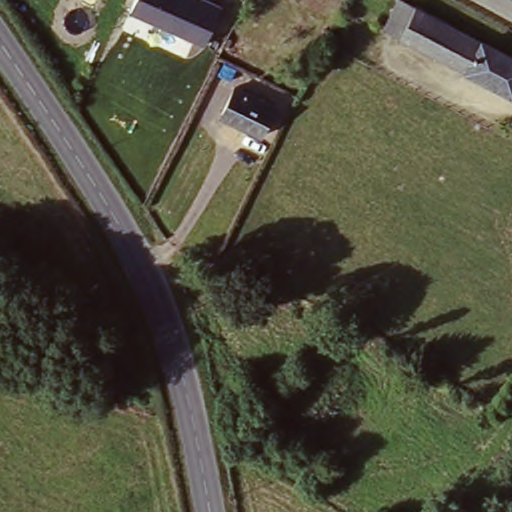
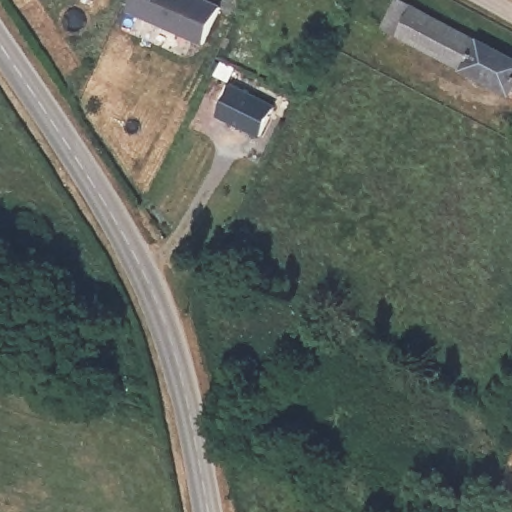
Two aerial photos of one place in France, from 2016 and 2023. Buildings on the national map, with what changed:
unchanged [(204,45),(130,12),(135,0),(208,0),(220,5),(204,45)]
unchanged [(438,29),(425,58),(385,39),(398,10),(438,29)]
unchanged [(512,65),(512,101),(425,58),(438,29),(512,65)]
unchanged [(224,115),(236,86),(271,106),(261,131),(224,115)]

